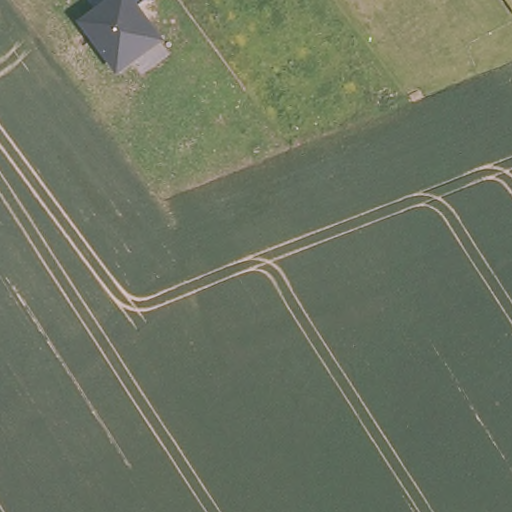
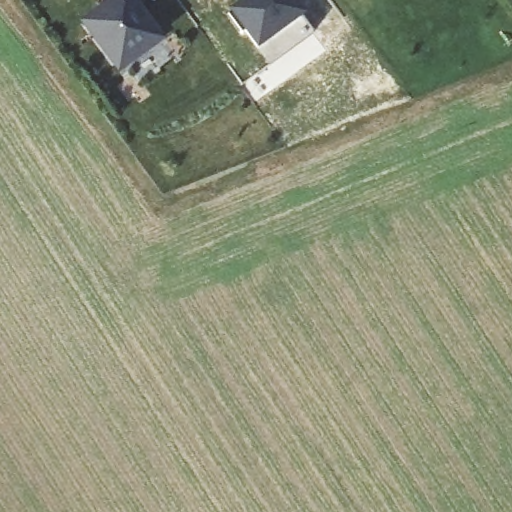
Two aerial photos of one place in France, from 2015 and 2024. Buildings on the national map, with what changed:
unchanged [(140,8),(167,43),(123,77),(77,24),(107,0),(150,0),(140,8)]
new [(227,14),(246,0),(292,0),(305,19),(257,54),(227,14)]

